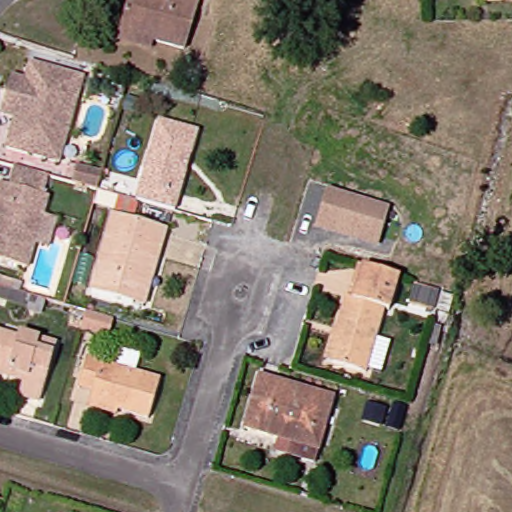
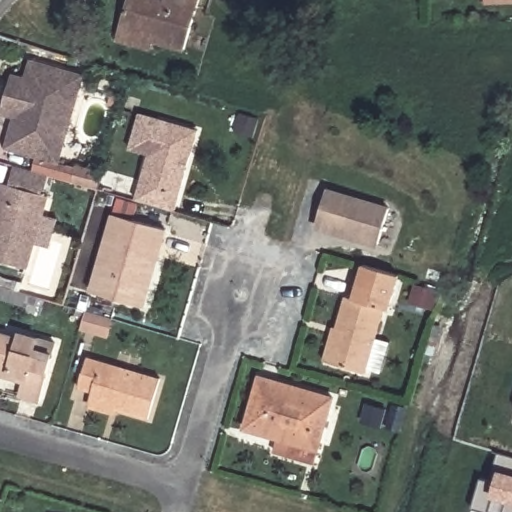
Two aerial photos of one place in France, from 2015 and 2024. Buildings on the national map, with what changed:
unchanged [(176,50),(145,40),(110,30),(119,0),(149,0),(156,2),(156,0),(190,0),(176,50)]
unchanged [(510,1),(476,2),(476,0),(510,0),(510,1)]
unchanged [(36,164),(0,154),(0,146),(7,122),(0,120),(0,96),(5,80),(18,84),(23,66),(75,81),(60,138),(51,168),(36,164)]
unchanged [(147,120),(186,131),(178,158),(176,170),(164,212),(125,201),(147,120)]
unchanged [(44,246),(30,242),(23,268),(0,262),(0,184),(5,185),(10,167),(45,177),(41,195),(44,195),(38,215),(52,219),(44,246)]
unchanged [(76,168),(102,176),(98,190),(72,183),(76,168)]
unchanged [(387,211),(378,246),(315,229),(325,194),(387,211)]
unchanged [(129,301),(88,288),(109,217),(160,232),(154,254),(139,304),(129,301)]
unchanged [(375,308),(357,372),(315,360),(324,326),(328,328),(336,296),(348,300),(358,266),(390,275),(380,310),(375,308)]
unchanged [(81,328),(86,310),(113,318),(108,336),(81,328)]
unchanged [(16,333),(33,338),(31,349),(47,354),(33,400),(16,396),(20,381),(22,376),(5,371),(4,376),(0,375),(0,334),(14,338),(16,333)]
unchanged [(144,418),(114,409),(115,407),(86,398),(88,391),(74,386),(82,358),(156,380),(144,418)]
unchanged [(329,402),(314,455),(239,434),(255,380),(329,402)]
new [(499,451),(512,455),(512,512),(487,512),(473,508),(481,477),(491,480),(499,451)]

